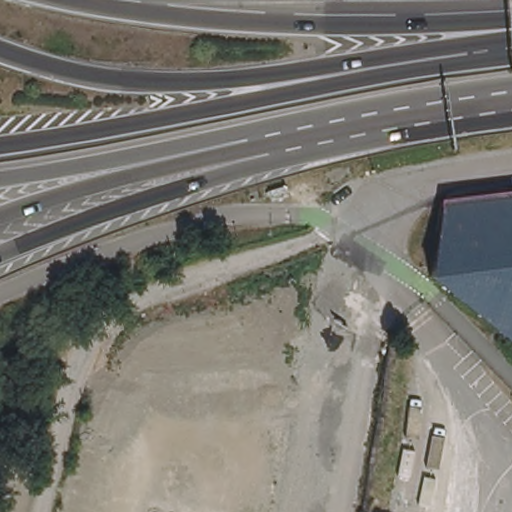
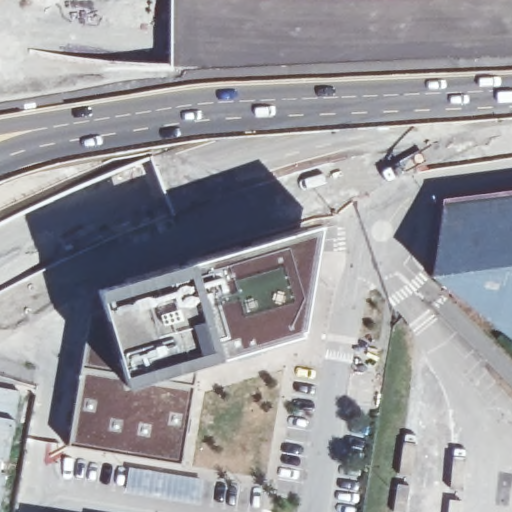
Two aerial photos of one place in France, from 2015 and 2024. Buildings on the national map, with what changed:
unchanged [(450,196),(512,188),(512,331),(437,272),(450,196)]
new [(303,331),(299,332),(300,337),(221,360),(195,367),(126,388),(103,310),(97,291),(192,263),(320,226),(303,331)]
new [(126,388),(195,367),(182,464),(68,447),(89,314),(103,310),(126,388)]
new [(22,390),(16,420),(0,417),(0,386),(22,390)]
new [(16,420),(8,461),(1,460),(0,460),(0,417),(16,420)]
new [(1,460),(0,466),(0,460),(1,460)]
new [(204,482),(201,501),(127,489),(130,470),(204,482)]
new [(6,473),(0,504),(0,472),(6,473)]

